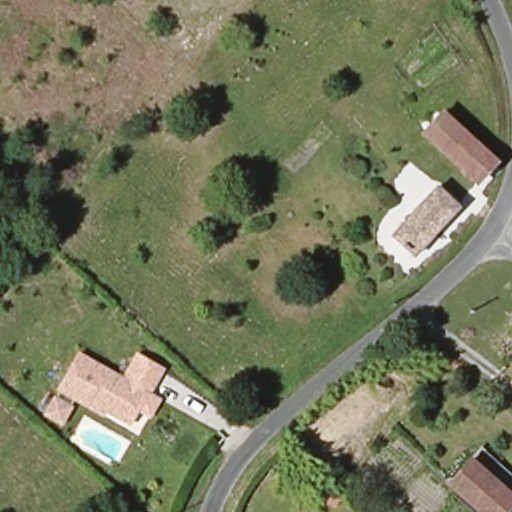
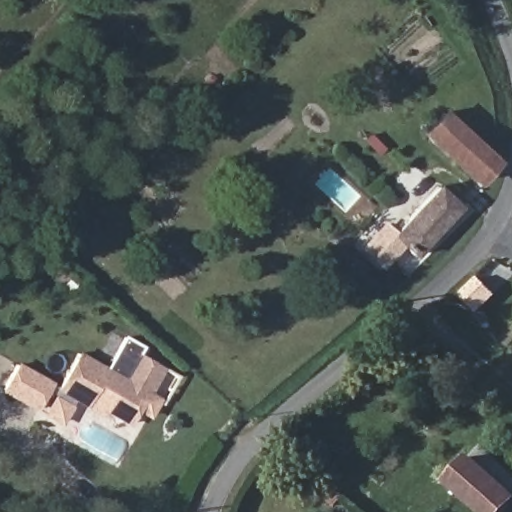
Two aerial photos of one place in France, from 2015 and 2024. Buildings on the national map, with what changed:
unchanged [(428,137),(444,117),(498,162),(481,183),(428,137)]
unchanged [(401,238),(445,188),(467,208),(424,258),(401,238)]
unchanged [(87,405),(71,396),(57,388),(59,385),(81,351),(111,369),(129,341),(142,347),(139,355),(164,369),(149,395),(159,401),(150,416),(140,410),(131,424),(107,410),(104,415),(87,405)]
new [(22,363),(57,385),(53,393),(70,404),(59,424),(4,393),(22,363)]
unchanged [(456,480),(477,458),(512,490),(512,503),(504,512),(489,512),(456,480)]

